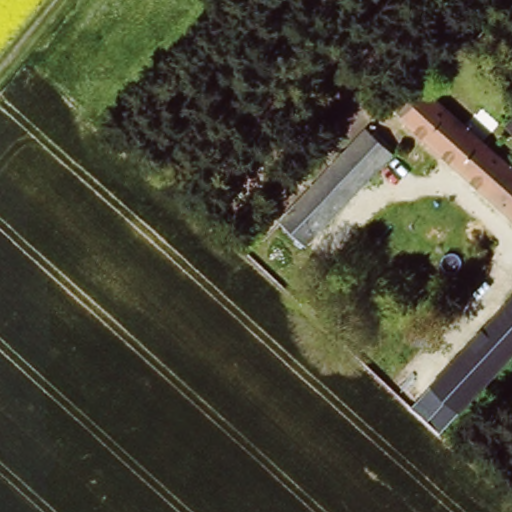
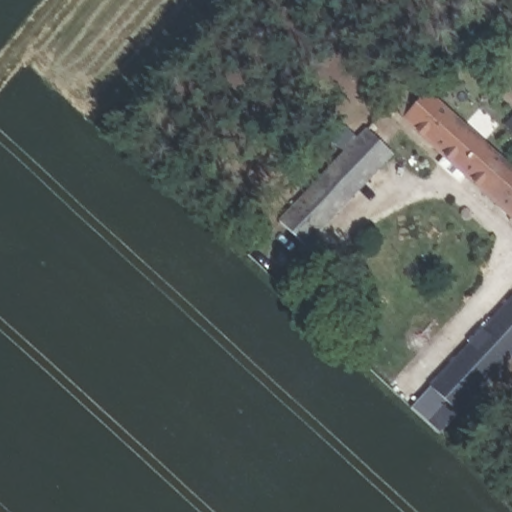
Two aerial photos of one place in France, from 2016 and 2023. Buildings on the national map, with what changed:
unchanged [(430,100),(512,174),(512,220),(390,110),(414,85),(430,100)]
unchanged [(336,156),(362,129),(392,155),(365,184),(336,156)]
unchanged [(302,250),(273,222),(336,156),(365,184),(302,250)]
unchanged [(285,286),(293,276),(327,306),(317,317),(285,286)]
unchanged [(442,400),(428,388),(512,296),(512,297),(512,352),(438,431),(425,418),(442,400)]

